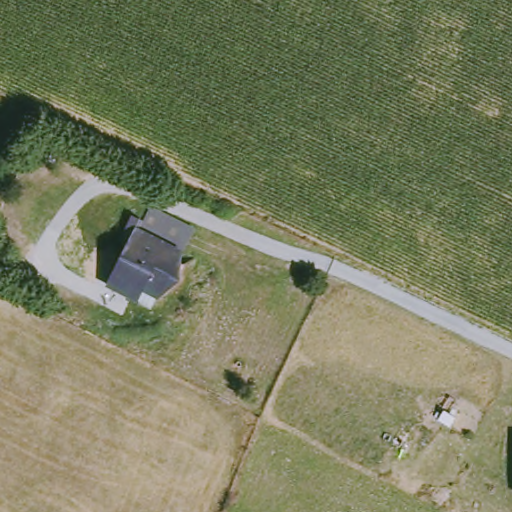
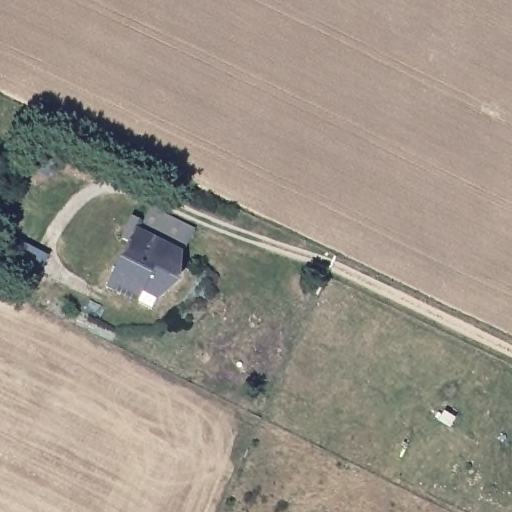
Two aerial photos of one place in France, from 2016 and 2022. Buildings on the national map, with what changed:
unchanged [(180,241),(176,246),(179,256),(180,264),(175,272),(160,278),(147,272),(138,289),(107,273),(135,218),(180,241)]

